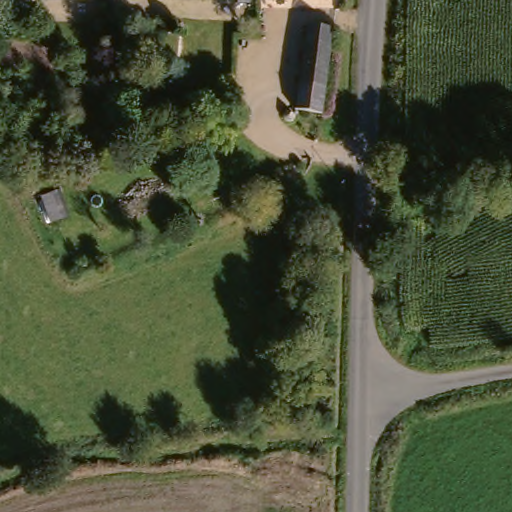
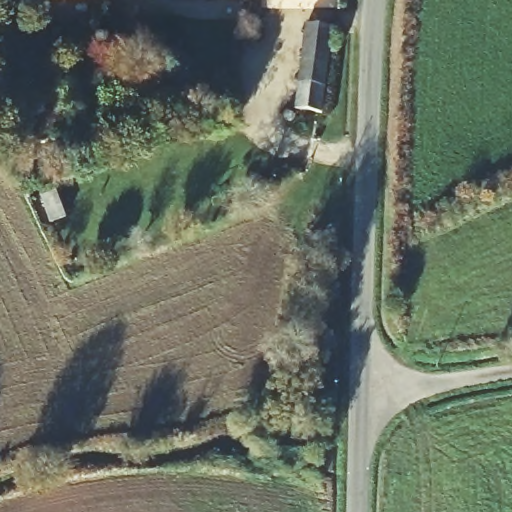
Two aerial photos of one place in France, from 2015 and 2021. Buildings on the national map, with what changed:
unchanged [(26,4),(26,0),(73,0),(26,4)]
unchanged [(334,1),(252,0),(334,0),(334,1)]
unchanged [(324,35),(319,125),(299,123),(295,123),(299,34),(324,35)]

